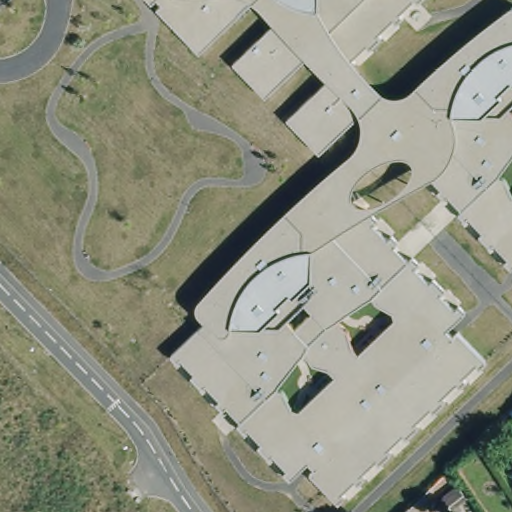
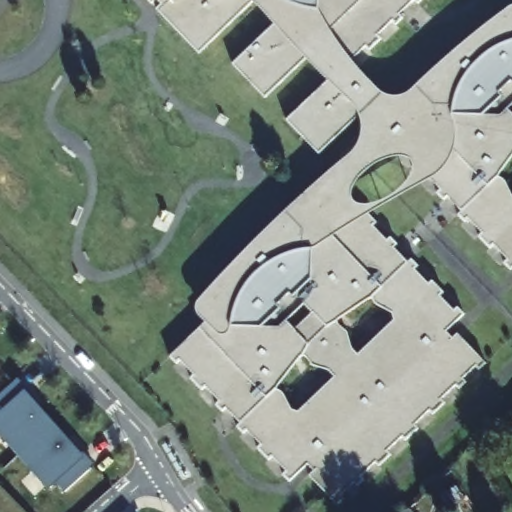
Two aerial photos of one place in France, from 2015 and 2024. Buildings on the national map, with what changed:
unchanged [(138,0),(248,0),(192,49),(138,0)]
unchanged [(312,465),(305,456),(286,477),(170,353),(202,320),(191,305),(356,146),(357,115),(315,152),(285,117),(325,81),(300,57),(262,93),(234,61),(273,24),(250,0),(418,0),(353,64),(377,92),(403,94),(510,3),(512,4),(512,154),(495,173),(504,181),(507,194),(512,198),(512,260),(511,260),(426,174),(396,197),(368,214),(459,311),(440,330),(451,339),(456,333),(485,362),(338,502),(307,474),(312,465)]
new [(77,481),(68,470),(47,488),(0,434),(0,394),(17,379),(33,397),(31,400),(87,464),(90,462),(95,466),(77,481)]

